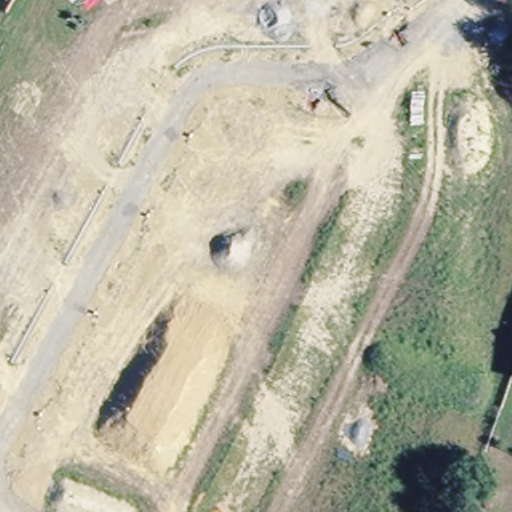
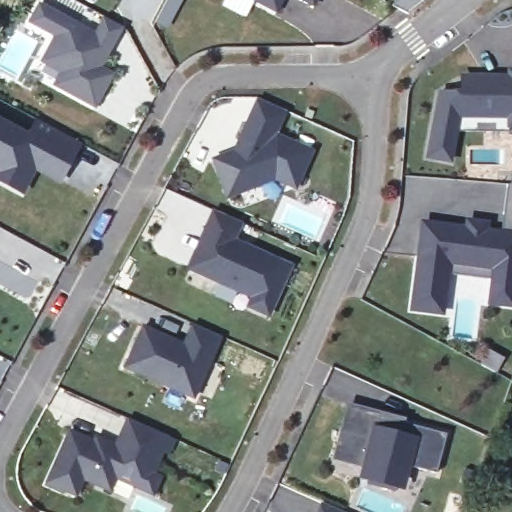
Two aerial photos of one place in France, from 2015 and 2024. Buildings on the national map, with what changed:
new [(170,0),(185,0),(180,9),(171,25),(160,20),(168,4),(170,0)]
new [(281,9),(264,0),(285,0),(281,9)]
new [(318,2),(313,0),(319,0),(318,2)]
new [(400,0),(427,0),(413,11),(397,3),(400,0)]
new [(118,73),(101,106),(62,85),(70,72),(50,61),(63,36),(35,21),(45,4),(100,33),(109,15),(127,25),(118,43),(109,60),(106,66),(118,73)]
new [(459,129),(454,158),(427,153),(438,89),(460,90),(461,77),(508,78),(508,68),(512,68),(512,124),(508,123),(508,130),(459,129)]
new [(246,148),(250,138),(246,136),(264,96),(291,108),(281,132),(318,149),(302,186),(280,176),(261,183),(262,185),(235,195),(220,158),(246,148)]
new [(0,113),(35,131),(42,118),(86,141),(76,160),(65,179),(39,165),(31,178),(25,190),(0,177),(0,113)]
new [(413,310),(424,225),(467,230),(468,223),(486,225),(484,233),(501,235),(503,215),(507,185),(512,185),(512,293),(511,305),(488,303),(491,280),(447,275),(442,313),(413,310)]
new [(248,220),(239,238),(297,264),(275,312),(255,304),(259,294),(211,273),(195,266),(208,237),(220,208),(248,220)]
new [(181,339),(190,343),(200,322),(227,334),(200,396),(131,366),(149,325),(181,339)]
new [(489,351),(501,359),(494,371),(481,364),(489,351)]
new [(339,424),(351,396),(407,421),(405,425),(445,443),(428,480),(401,468),(394,484),(356,468),(358,464),(327,451),(334,435),(339,424)]
new [(126,471),(118,490),(91,478),(83,494),(68,488),(67,490),(53,484),(76,430),(109,444),(111,440),(123,445),(135,417),(182,437),(178,446),(176,451),(170,448),(160,473),(167,476),(160,493),(141,485),(143,479),(126,471)]
new [(343,512),(324,512),(327,505),(343,512)]

